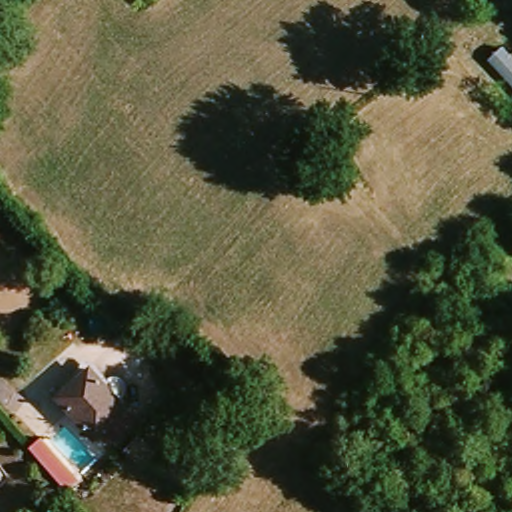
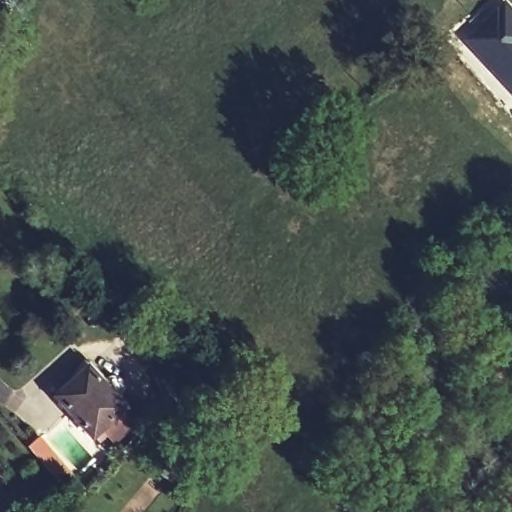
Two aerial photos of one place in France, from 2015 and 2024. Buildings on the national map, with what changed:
new [(512,6),(512,92),(462,39),(503,0),(506,0),(512,6)]
unchanged [(97,369),(132,409),(101,438),(64,397),(97,369)]
unchanged [(237,423),(215,409),(232,380),(255,395),(237,423)]

